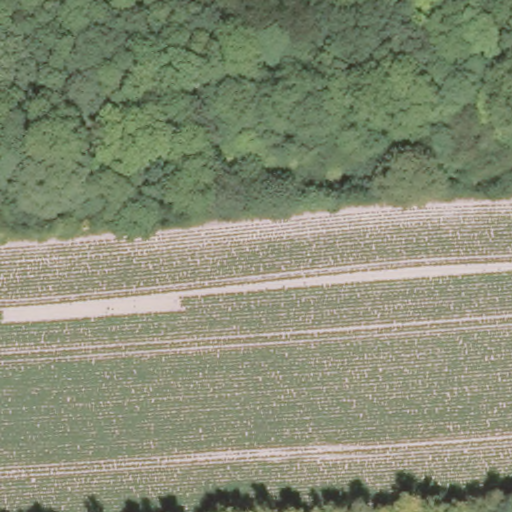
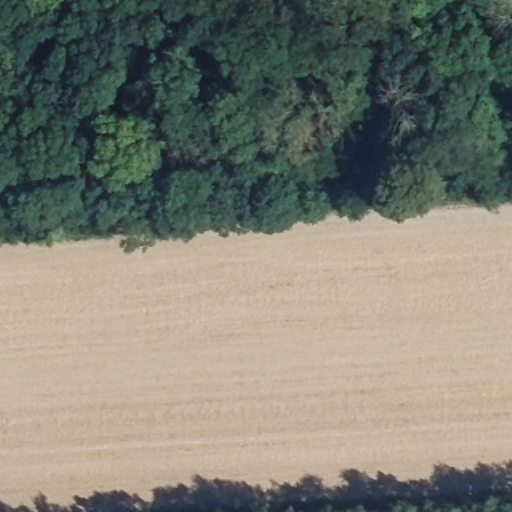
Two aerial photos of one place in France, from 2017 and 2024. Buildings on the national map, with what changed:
unchanged [(320,175),(319,190),(292,188),(293,173),(320,175)]

